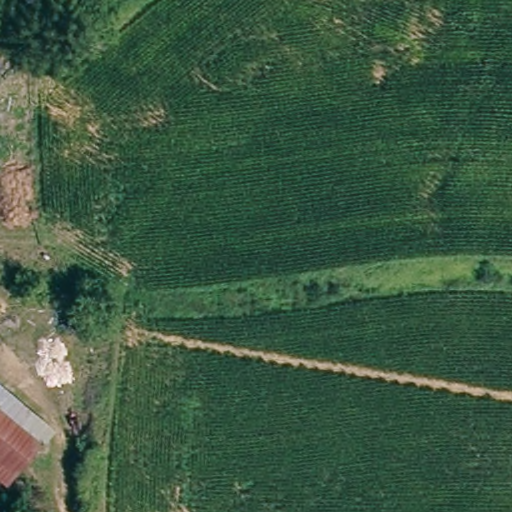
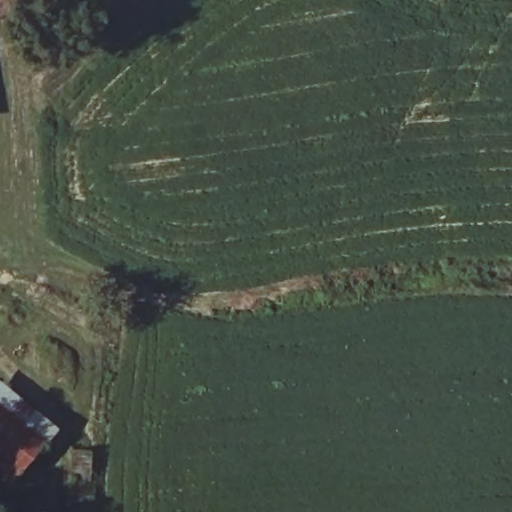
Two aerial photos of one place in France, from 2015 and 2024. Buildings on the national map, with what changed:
unchanged [(19,473),(0,458),(0,387),(52,430),(19,473)]

